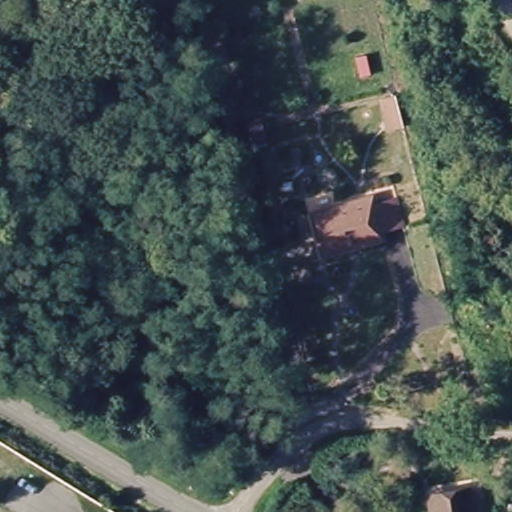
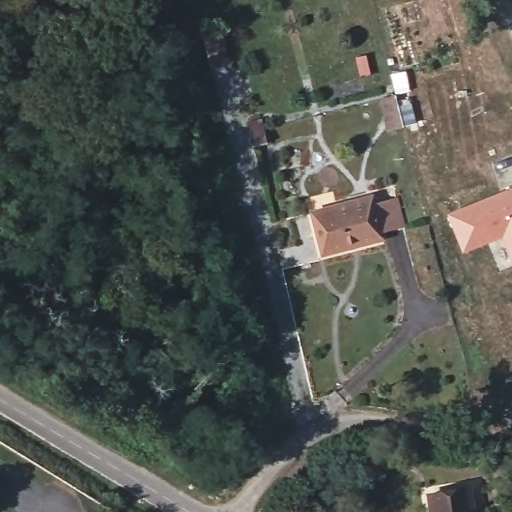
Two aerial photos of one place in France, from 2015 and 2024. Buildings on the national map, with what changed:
unchanged [(216,42),(222,71),(205,74),(198,45),(216,42)]
unchanged [(398,105),(407,137),(392,140),(385,107),(398,105)]
unchanged [(254,124),(256,133),(259,148),(243,151),(237,127),(254,124)]
new [(512,190),(512,263),(502,236),(462,252),(448,214),(512,190)]
unchanged [(377,205),(396,201),(402,229),(383,233),(385,243),(324,257),(314,214),(376,200),(377,205)]
unchanged [(474,512),(433,512),(428,496),(468,487),(474,512)]

